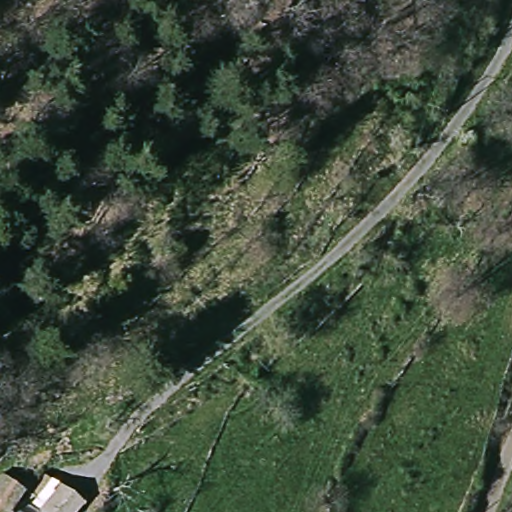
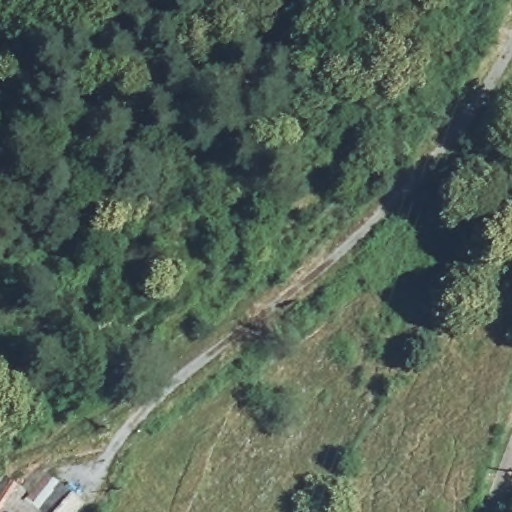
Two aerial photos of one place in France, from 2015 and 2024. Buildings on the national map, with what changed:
unchanged [(0,512),(0,478),(3,473),(28,489),(25,495),(31,498),(50,472),(86,500),(78,512),(0,512)]

